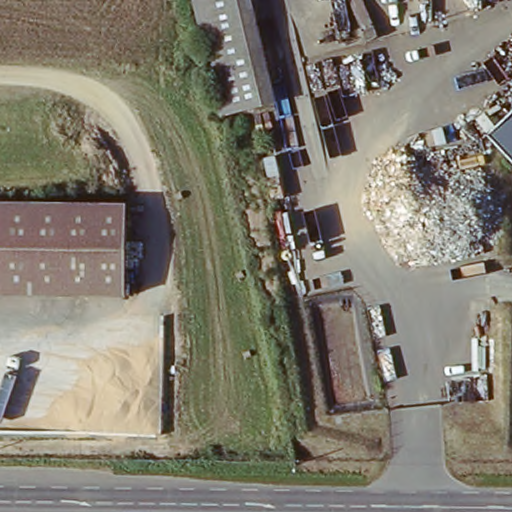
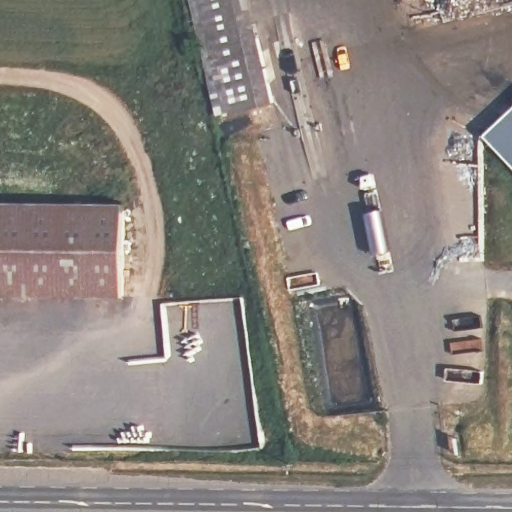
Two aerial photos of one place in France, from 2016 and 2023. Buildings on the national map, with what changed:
unchanged [(208,71),(191,0),(248,0),(262,57),(208,71)]
unchanged [(274,107),(220,121),(208,71),(262,57),(274,107)]
unchanged [(512,112),(512,164),(486,137),(512,112)]
unchanged [(129,205),(126,296),(0,295),(0,203),(129,205)]

